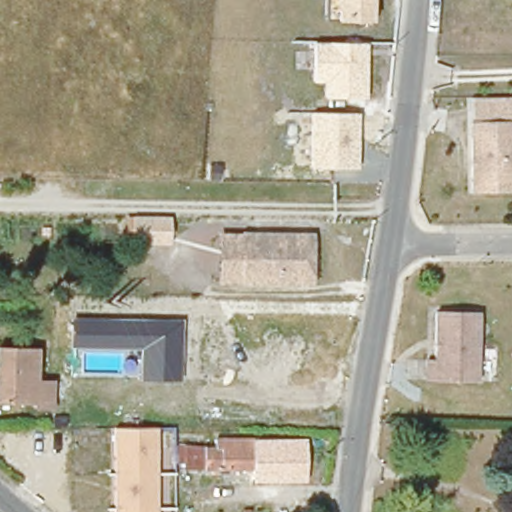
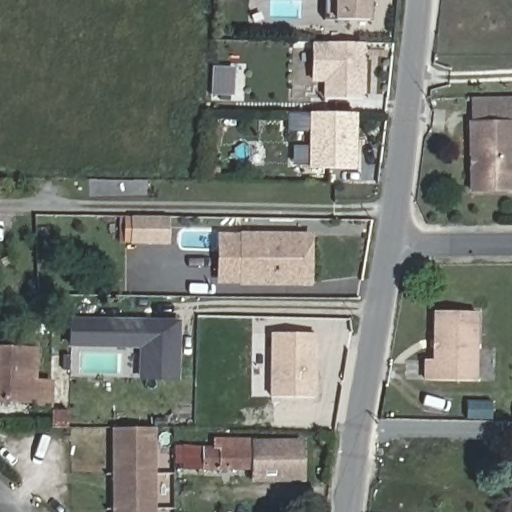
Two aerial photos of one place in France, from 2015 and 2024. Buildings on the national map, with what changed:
unchanged [(336,20),(325,19),(326,0),(371,0),(370,19),(336,20)]
unchanged [(366,97),(323,97),(323,82),(312,81),(313,42),(366,42),(366,97)]
unchanged [(512,97),(512,118),(474,118),(473,97),(512,97)]
unchanged [(310,168),(310,111),(360,112),(358,167),(310,168)]
unchanged [(467,118),(474,118),(512,118),(512,143),(511,167),(466,167),(467,118)]
unchanged [(511,167),(511,193),(466,193),(466,167),(511,167)]
new [(136,217),(170,218),(170,243),(135,243),(136,217)]
unchanged [(307,281),(239,281),(219,280),(220,232),(240,233),(308,234),(307,281)]
unchanged [(422,360),(428,359),(430,312),(472,312),(471,381),(421,382),(422,360)]
unchanged [(139,379),(140,349),(70,347),(70,317),(182,319),(180,381),(139,379)]
new [(278,332),(318,332),(316,402),(276,401),(278,332)]
unchanged [(0,378),(0,348),(35,348),(35,377),(0,378)]
unchanged [(35,381),(50,381),(51,407),(34,407),(34,402),(0,401),(0,378),(35,377),(35,381)]
unchanged [(157,512),(113,512),(112,427),(157,427),(157,512)]
unchanged [(253,473),(259,473),(259,439),(306,437),(306,481),(253,482),(253,473)]
unchanged [(191,455),(217,455),(217,439),(259,439),(259,473),(253,473),(191,473),(191,455)]

